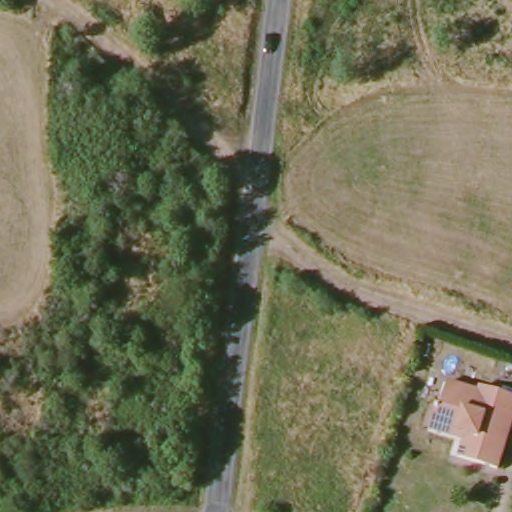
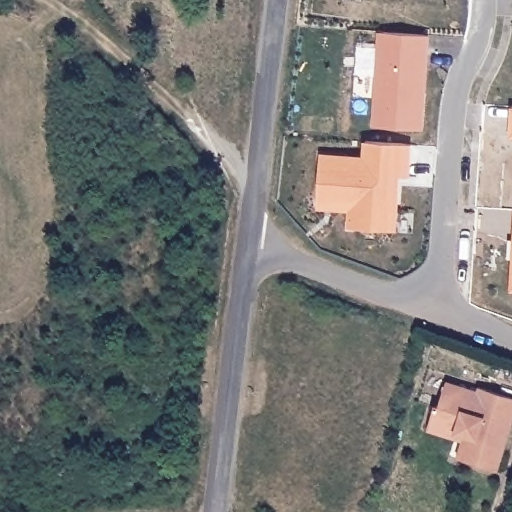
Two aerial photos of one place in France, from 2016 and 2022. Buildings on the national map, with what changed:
new [(429,33),(427,66),(425,92),(422,128),(373,125),(381,30),(429,33)]
new [(510,134),(512,116),(512,134),(510,134)]
new [(350,208),(340,208),(340,204),(317,202),(320,153),(365,156),(366,140),(410,143),(408,175),(395,174),(394,183),(398,183),(396,208),(395,230),(348,226),(350,208)]
new [(508,292),(510,261),(504,260),(505,241),(511,241),(512,241),(512,292),(508,292)]
unchanged [(460,458),(466,434),(430,425),(435,407),(439,408),(445,383),(477,391),(478,386),(512,395),(512,421),(500,468),(460,458)]

